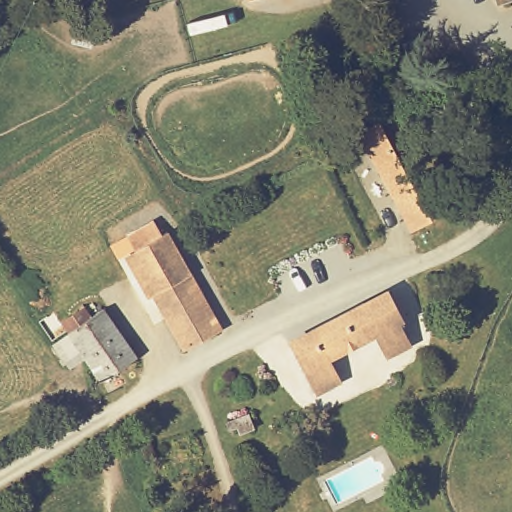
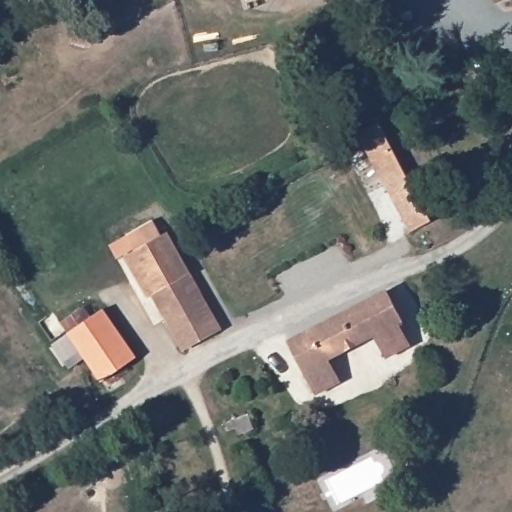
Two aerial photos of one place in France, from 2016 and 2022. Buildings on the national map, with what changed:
unchanged [(253,0),(269,0),(255,5),(253,0)]
unchanged [(496,0),(512,0),(512,2),(497,5),(496,0)]
unchanged [(359,132),(379,122),(432,220),(424,225),(412,231),(359,132)]
unchanged [(140,253),(132,237),(157,223),(166,239),(171,236),(227,334),(189,353),(135,255),(140,253)]
unchanged [(389,299),(402,324),(396,328),(407,348),(389,357),(378,338),(328,365),(337,384),(321,393),(311,374),(307,376),(292,348),(311,338),(310,334),(363,305),(367,310),(389,299)]
unchanged [(68,328),(77,323),(71,313),(86,305),(92,315),(103,309),(132,360),(97,382),(68,328)]
unchanged [(239,425),(231,425),(229,416),(255,416),(254,431),(240,432),(239,425)]

